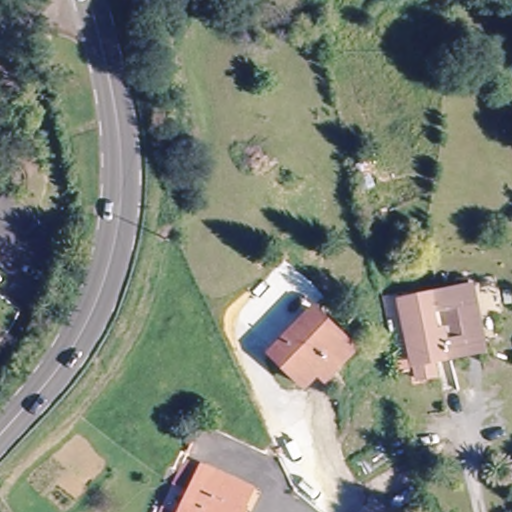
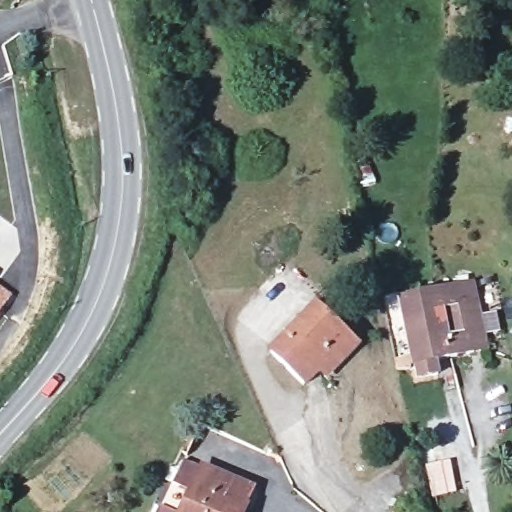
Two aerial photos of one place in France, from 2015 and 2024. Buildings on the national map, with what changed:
unchanged [(417,379),(414,365),(400,299),(471,284),(485,351),(450,358),(435,361),(437,375),(417,379)]
unchanged [(319,370),(304,385),(271,353),(315,308),(355,347),(336,366),(326,377),(319,370)]
unchanged [(177,483),(189,460),(256,491),(247,508),(252,511),(252,512),(187,512),(196,493),(177,483)]
unchanged [(179,512),(164,512),(166,506),(179,512)]

